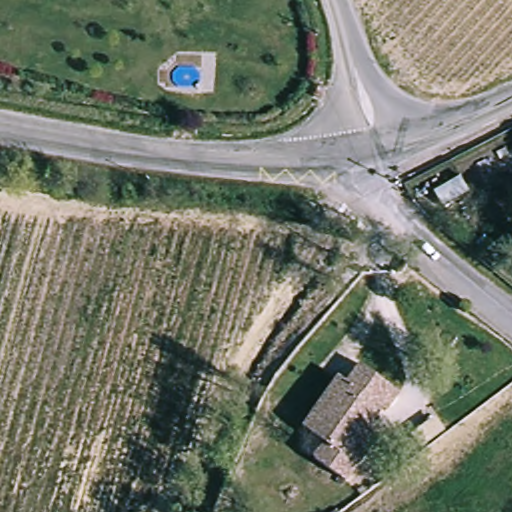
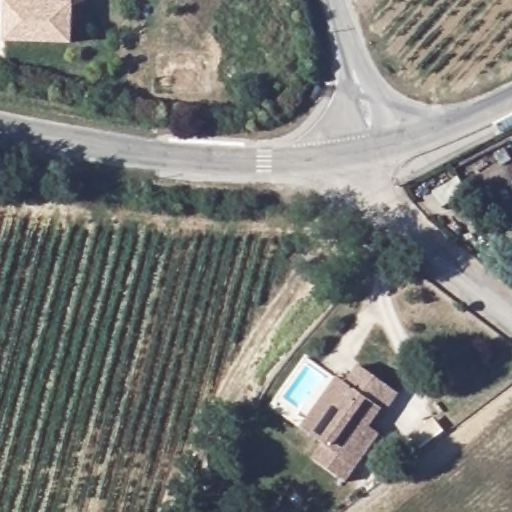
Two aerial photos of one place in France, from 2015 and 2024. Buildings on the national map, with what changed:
new [(73,45),(5,44),(5,0),(19,0),(74,2),(73,45)]
unchanged [(399,399),(386,417),(378,411),(364,429),(382,443),(349,487),(317,462),(326,446),(314,435),(305,429),(340,384),(349,388),(361,373),(399,399)]

